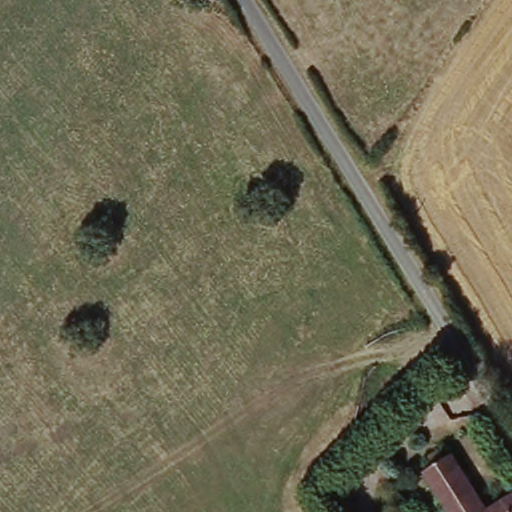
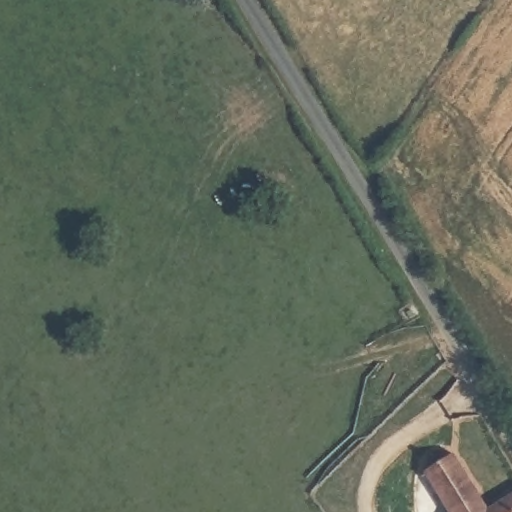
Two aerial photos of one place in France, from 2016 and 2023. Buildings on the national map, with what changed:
unchanged [(436,467),(427,457),(440,448),(448,460),(454,456),(490,512),(449,512),(425,477),(436,467)]
unchanged [(512,512),(491,512),(512,497),(512,512)]

